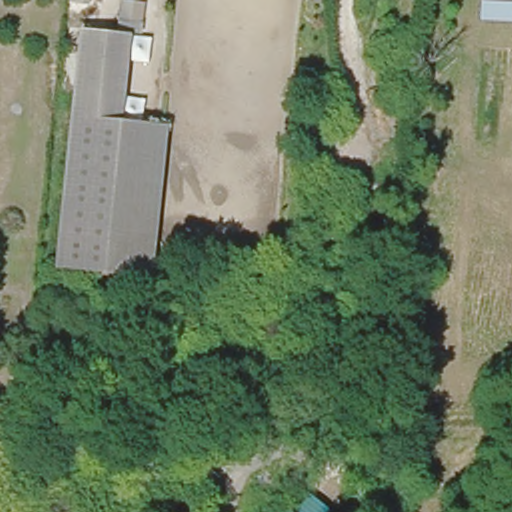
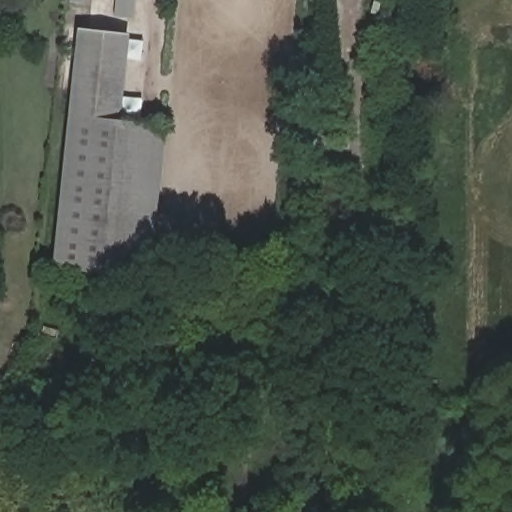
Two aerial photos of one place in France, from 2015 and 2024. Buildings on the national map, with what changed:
demolished [(512,23),(477,20),(479,0),(512,2),(512,23)]
unchanged [(128,40),(120,125),(165,130),(148,285),(51,272),(76,34),(128,40)]

